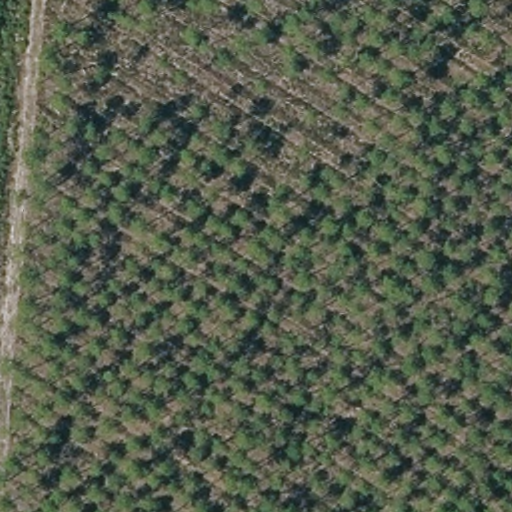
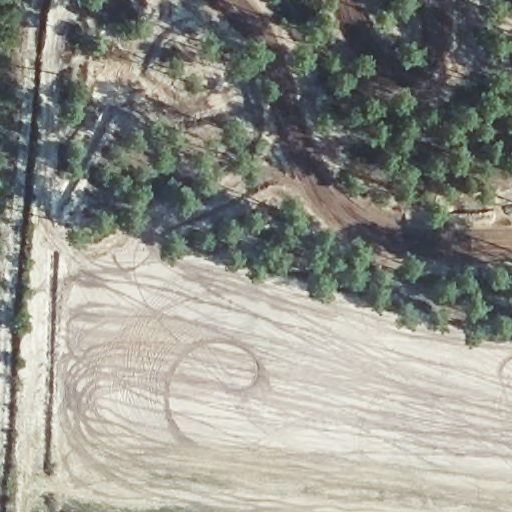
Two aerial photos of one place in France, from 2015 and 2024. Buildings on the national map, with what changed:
[]

